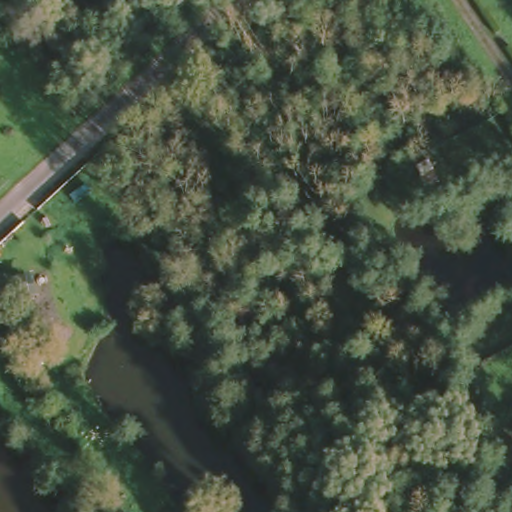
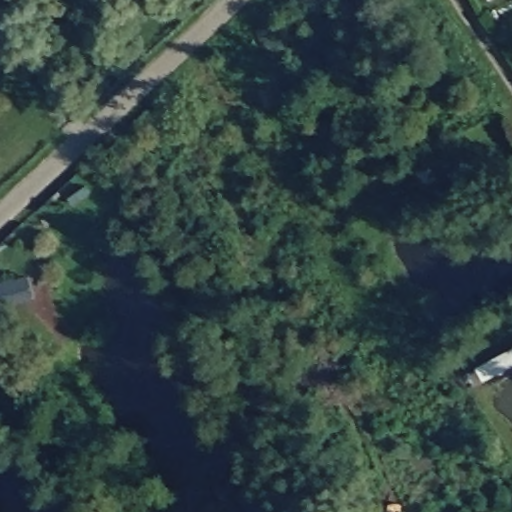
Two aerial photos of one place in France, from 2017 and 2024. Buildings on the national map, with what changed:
unchanged [(0,280),(0,275),(17,271),(22,290),(3,294),(0,280)]

